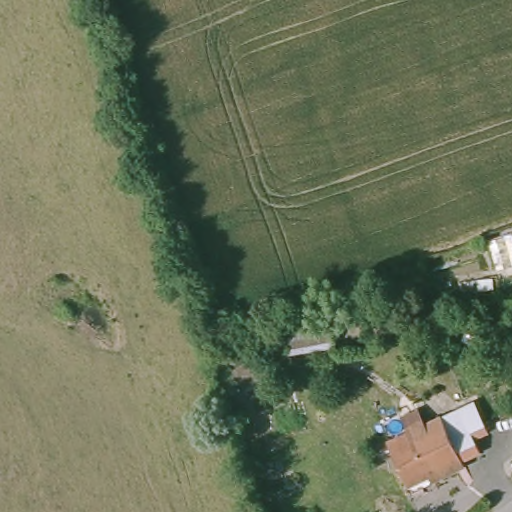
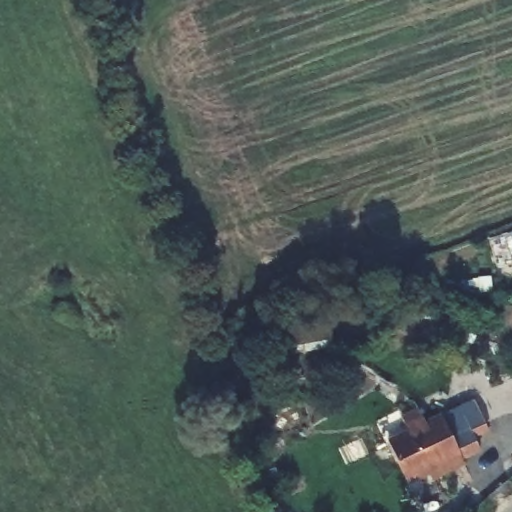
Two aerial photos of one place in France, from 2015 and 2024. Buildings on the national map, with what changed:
unchanged [(504,242),(512,240),(512,272),(504,242)]
unchanged [(447,476),(435,482),(431,473),(408,485),(388,444),(408,434),(401,419),(418,411),(425,425),(461,409),(480,449),(462,458),(466,468),(447,476)]

